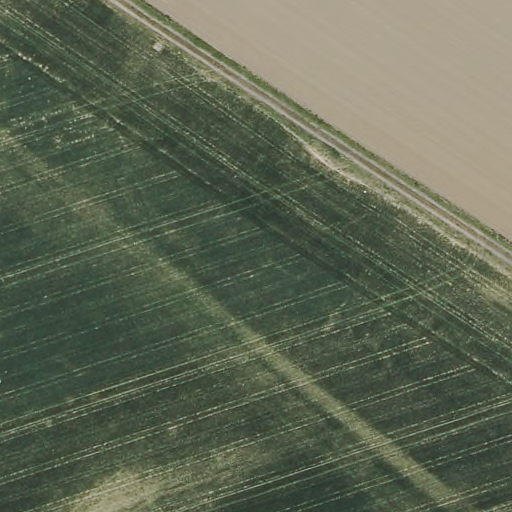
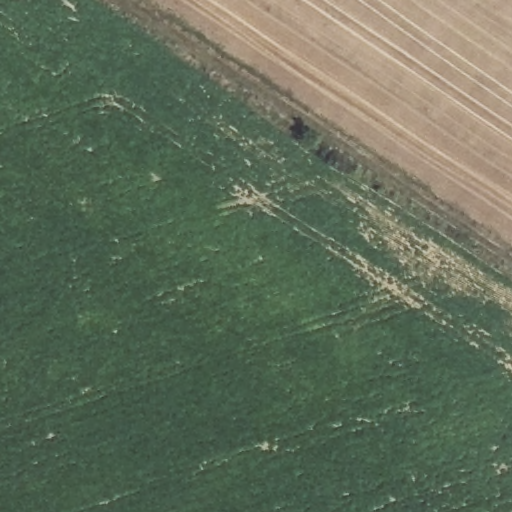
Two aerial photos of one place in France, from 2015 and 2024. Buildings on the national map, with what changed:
[]

